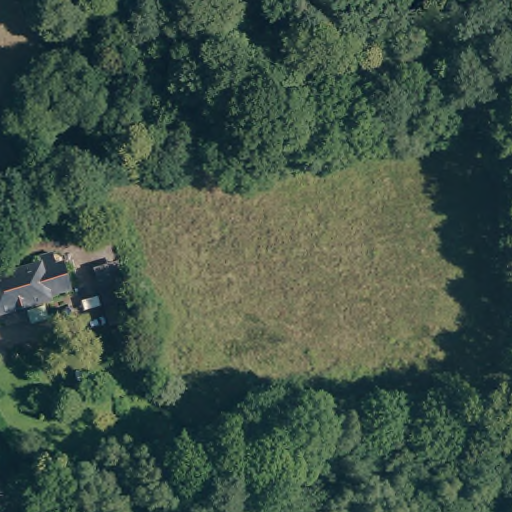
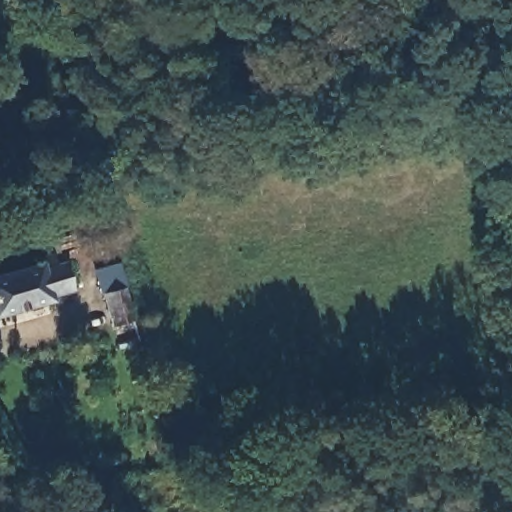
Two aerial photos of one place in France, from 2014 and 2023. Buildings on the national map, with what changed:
unchanged [(46,252),(60,247),(65,260),(76,259),(78,283),(55,287),(56,300),(18,309),(0,315),(0,277),(47,260),(46,252)]
unchanged [(102,289),(118,284),(128,317),(112,322),(102,289)]

